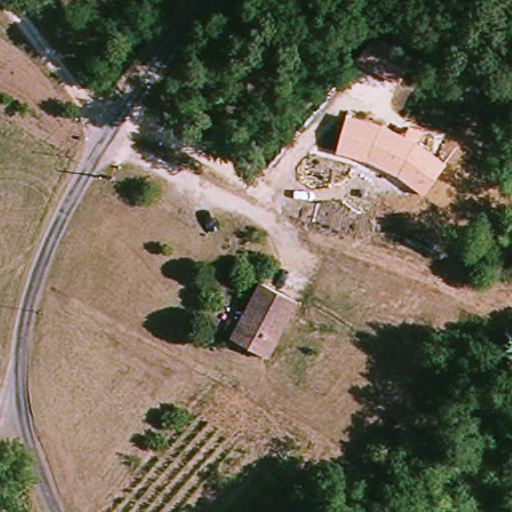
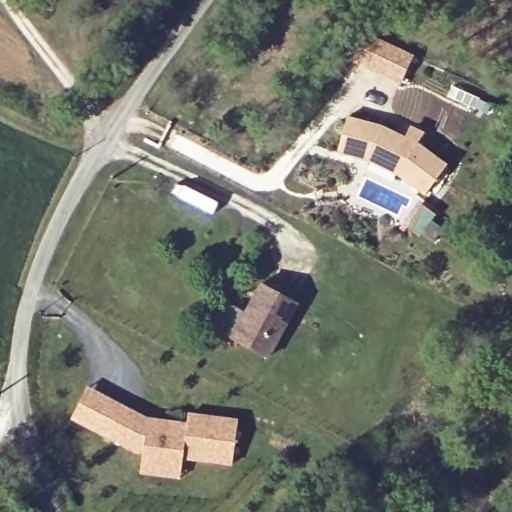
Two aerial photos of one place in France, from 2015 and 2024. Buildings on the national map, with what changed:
unchanged [(364,35),(412,57),(399,85),(351,61),(364,35)]
unchanged [(383,126),(404,137),(410,125),(425,133),(419,145),(448,165),(425,197),(399,176),(368,162),(337,155),(345,116),(383,126)]
unchanged [(304,302),(273,359),(238,340),(267,283),(304,302)]
new [(149,416),(186,420),(188,412),(237,416),(232,465),(183,459),(180,479),(140,475),(142,453),(137,452),(70,418),(87,385),(149,416)]

